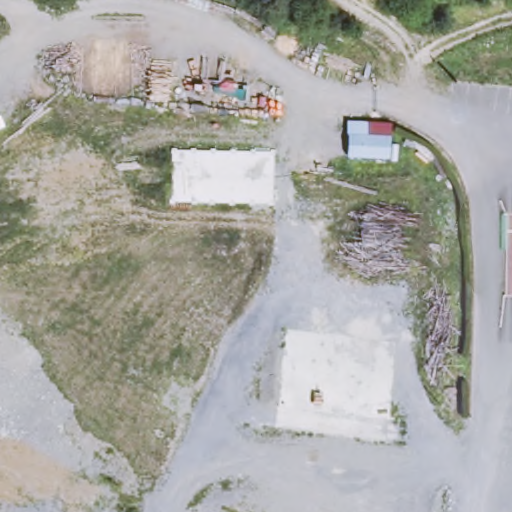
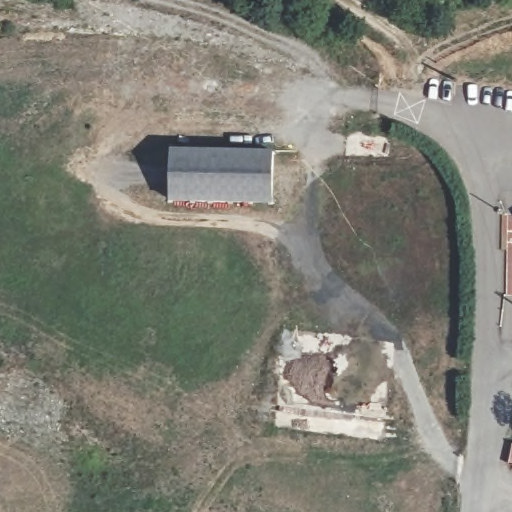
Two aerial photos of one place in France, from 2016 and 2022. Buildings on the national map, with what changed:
new [(393,154),(351,155),(348,128),(392,125),(393,154)]
new [(172,205),(170,155),(271,148),(275,198),(172,205)]

